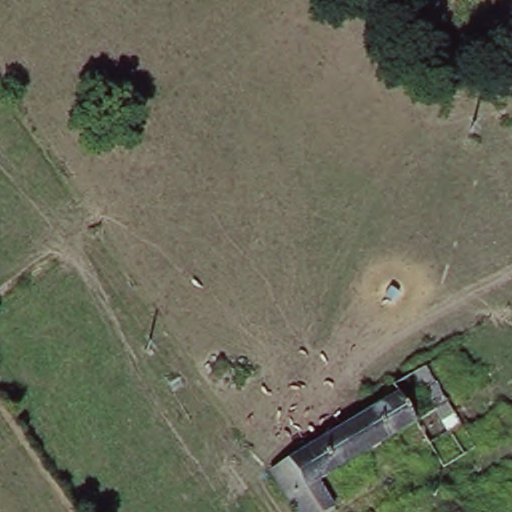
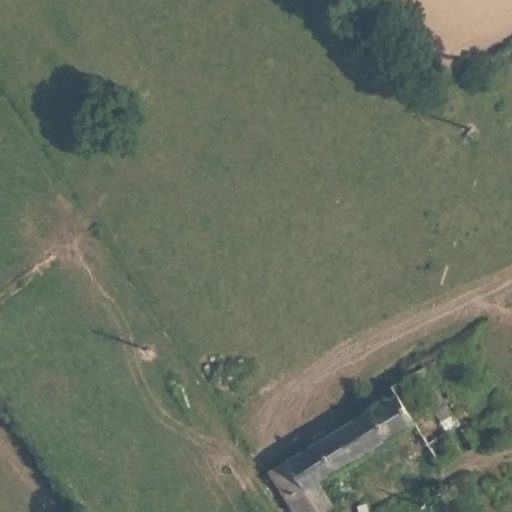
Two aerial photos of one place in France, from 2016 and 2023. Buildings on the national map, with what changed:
unchanged [(413,426),(319,482),(337,509),(333,512),(291,512),(265,471),(394,390),(413,426)]

